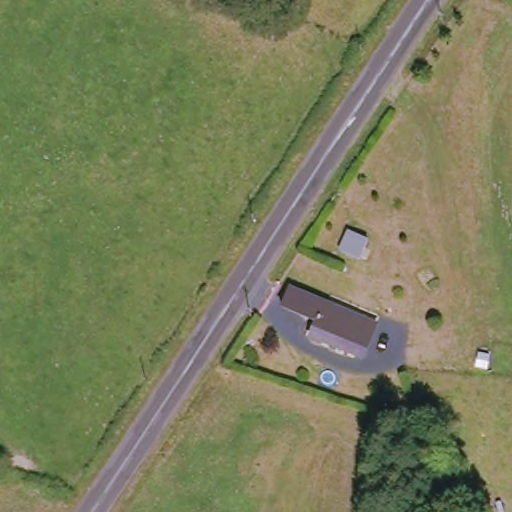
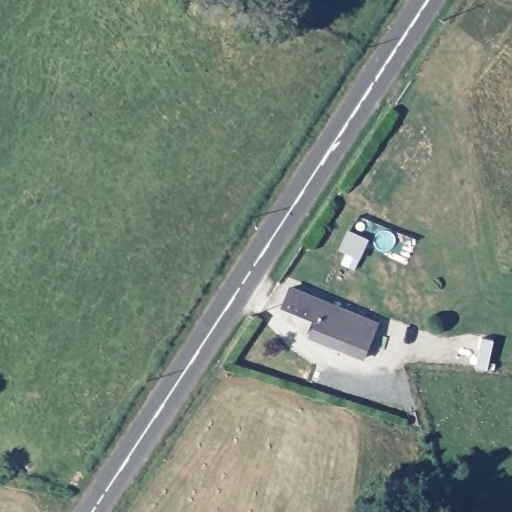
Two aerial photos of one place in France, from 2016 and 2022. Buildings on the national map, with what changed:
unchanged [(353,244),(345,260),(328,253),(338,235),(353,242),(353,244)]
unchanged [(357,357),(308,339),(312,325),(276,308),(284,288),(371,322),(357,357)]

